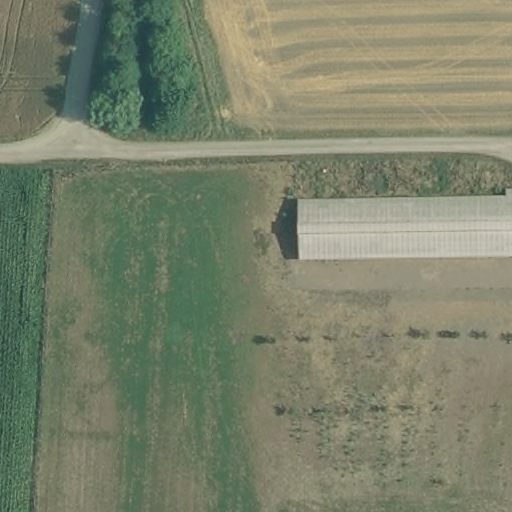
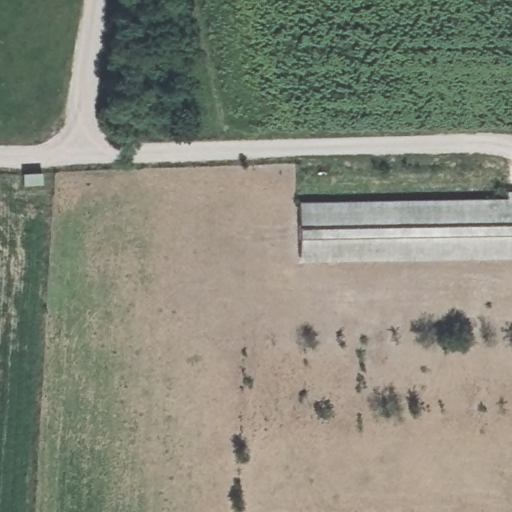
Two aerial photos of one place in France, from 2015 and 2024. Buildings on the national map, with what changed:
unchanged [(512,202),(512,252),(505,252),(299,256),(298,206),(508,202),(512,202)]

